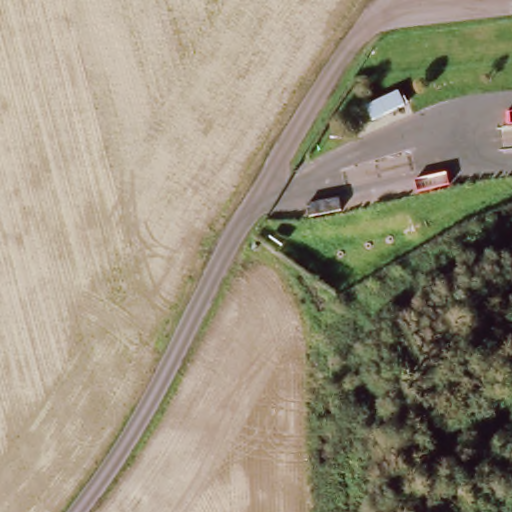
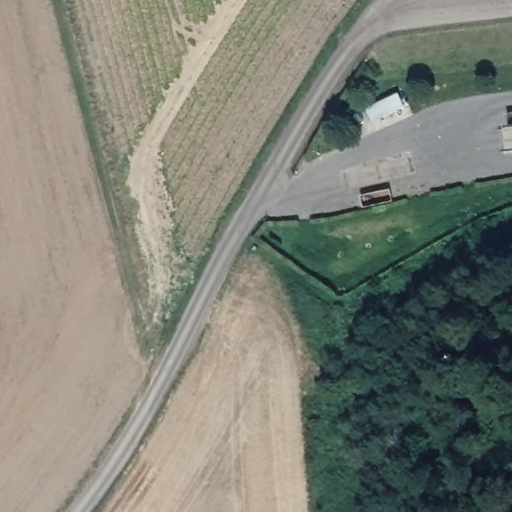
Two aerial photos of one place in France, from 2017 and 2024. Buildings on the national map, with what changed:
unchanged [(502,128),(512,128),(512,153),(505,153),(502,128)]

